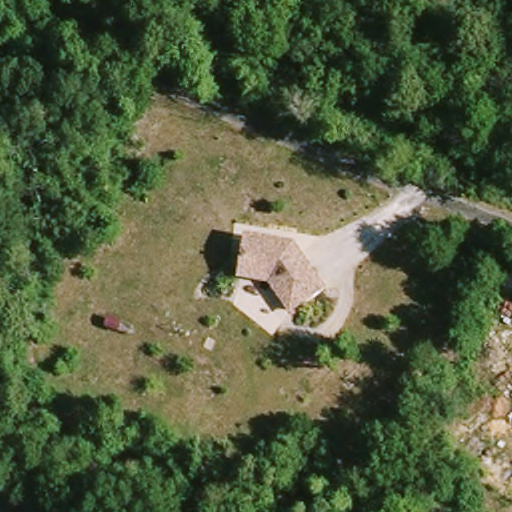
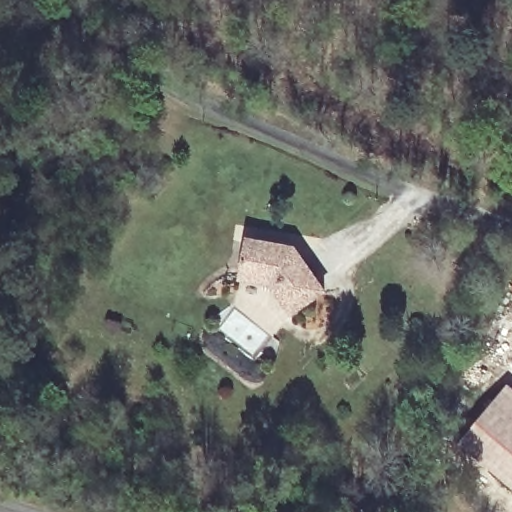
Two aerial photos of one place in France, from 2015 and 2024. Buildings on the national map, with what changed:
unchanged [(294,245),(322,290),(287,311),(270,280),(239,274),(247,237),(280,245),(280,242),(294,245)]
new [(512,394),(512,420),(490,402),(503,386),(512,394)]
new [(512,420),(512,492),(455,445),(490,402),(512,420)]

